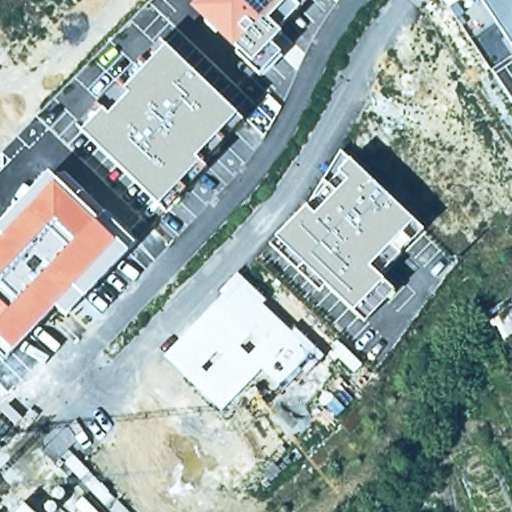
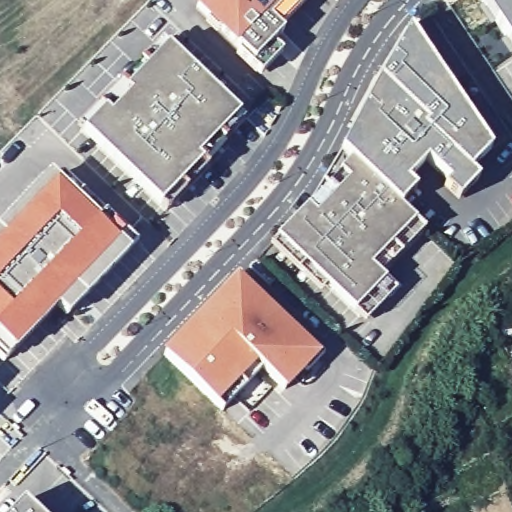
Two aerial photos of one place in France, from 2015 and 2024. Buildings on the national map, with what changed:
unchanged [(303,0),(267,39),(270,41),(260,52),(269,62),(249,82),(223,56),(181,15),(195,0),(303,0)]
unchanged [(512,0),(512,48),(482,0),(512,0)]
new [(350,159),(341,150),(378,79),(404,33),(409,27),(490,149),(469,171),(477,179),(458,201),(443,186),(447,182),(425,161),(406,181),(415,190),(399,207),(350,159)]
unchanged [(154,45),(161,52),(231,120),(236,126),(198,167),(202,171),(159,215),(153,210),(72,129),(154,45)]
unchanged [(350,159),(399,207),(424,230),(381,275),(396,290),(366,322),(355,311),(327,284),(320,291),(270,244),(308,206),(341,150),(350,159)]
unchanged [(50,174),(58,181),(64,175),(137,244),(129,252),(69,317),(56,306),(8,359),(0,352),(0,226),(50,174)]
unchanged [(152,360),(209,298),(206,296),(225,275),(254,303),(250,307),(278,333),(282,330),(312,358),(295,377),(290,373),(270,393),(248,373),(210,413),(152,360)]
new [(34,512),(13,512),(23,501),(34,512)]

